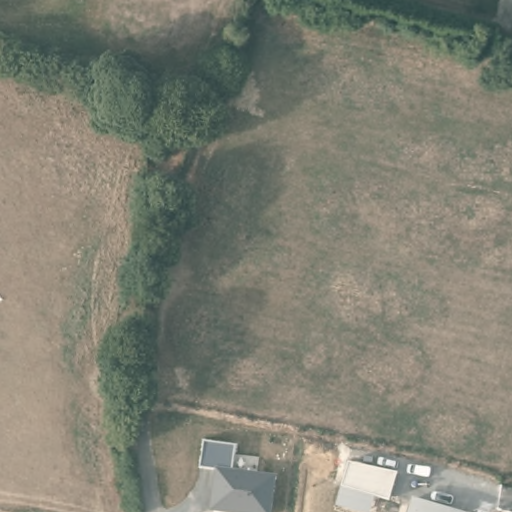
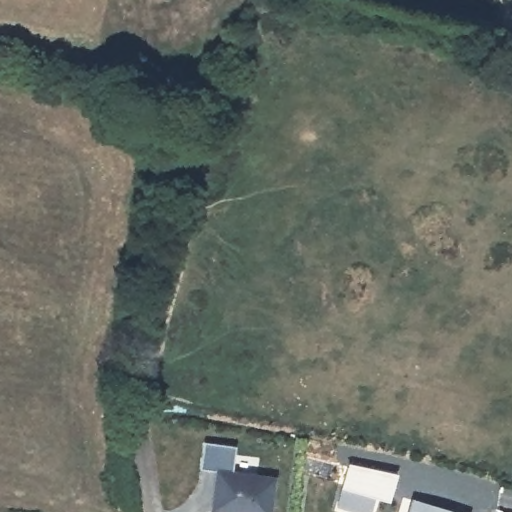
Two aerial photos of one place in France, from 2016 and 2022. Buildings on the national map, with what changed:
unchanged [(272,512),(211,512),(215,471),(200,469),(203,442),(235,447),(232,471),(276,476),(272,512)]
unchanged [(375,497),(370,512),(364,512),(337,505),(342,487),(349,461),(395,472),(390,500),(375,497)]
unchanged [(414,497),(465,512),(409,512),(414,498),(414,497)]

